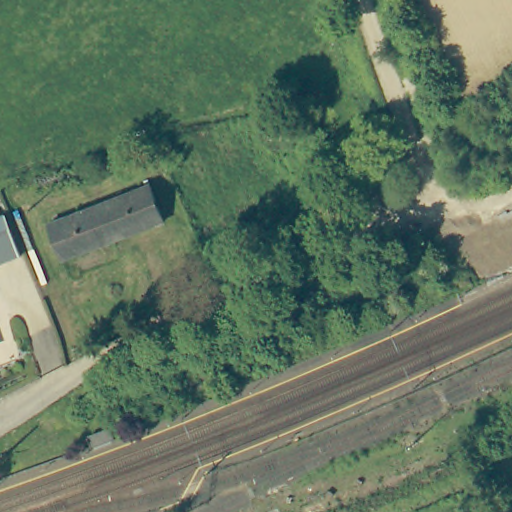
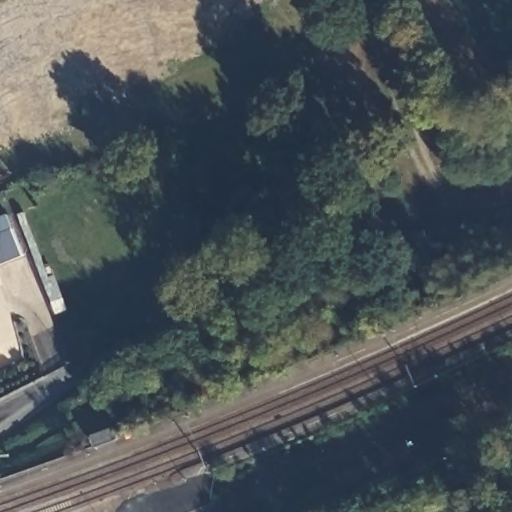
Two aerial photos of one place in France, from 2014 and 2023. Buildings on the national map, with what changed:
unchanged [(307,137),(274,150),(266,129),(297,116),(307,137)]
demolished [(162,224),(71,262),(56,226),(146,188),(162,224)]
unchanged [(0,267),(0,217),(9,215),(25,257),(0,267)]

